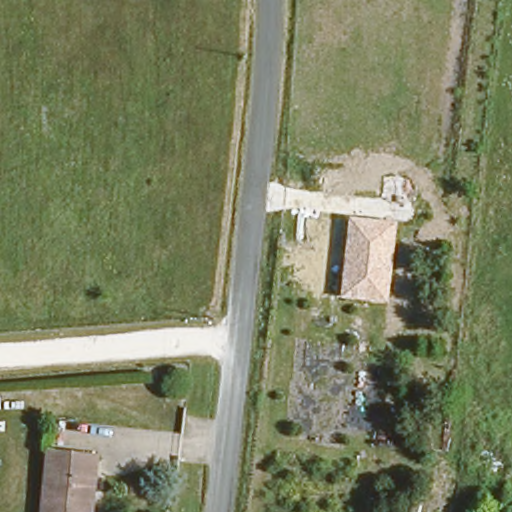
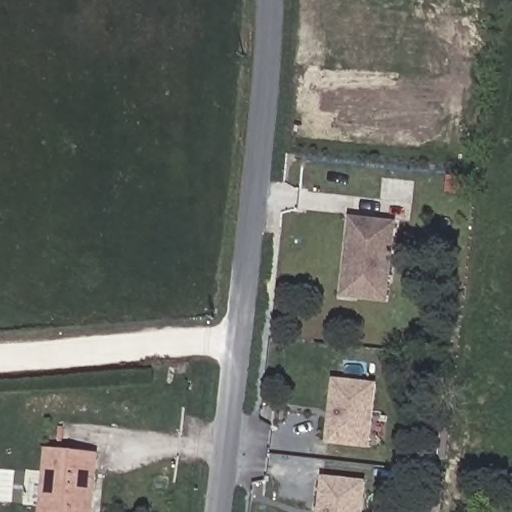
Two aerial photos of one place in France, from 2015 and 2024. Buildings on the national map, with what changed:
unchanged [(388,300),(343,295),(353,217),(399,222),(388,300)]
new [(332,378),(374,382),(367,446),(325,441),(332,378)]
unchanged [(39,512),(42,480),(46,445),(56,446),(95,450),(89,512),(39,512)]
new [(363,480),(360,512),(318,512),(322,476),(363,480)]

